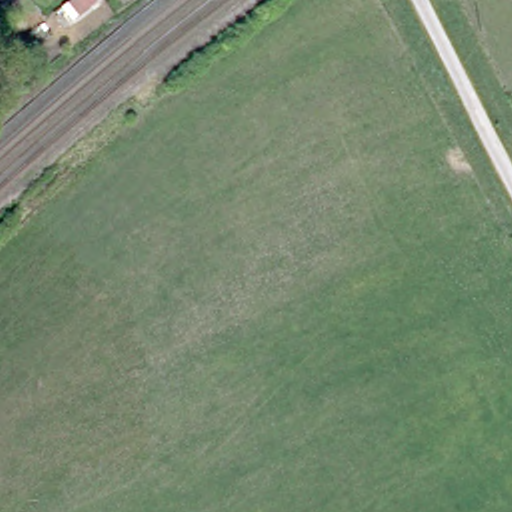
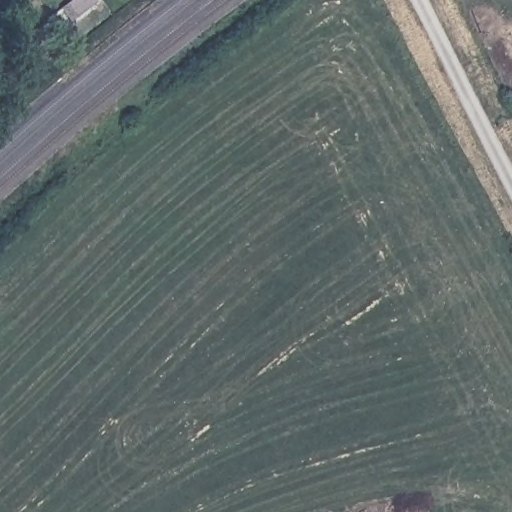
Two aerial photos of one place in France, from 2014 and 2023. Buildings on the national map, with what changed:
unchanged [(95,0),(74,17),(63,5),(69,0),(95,0)]

